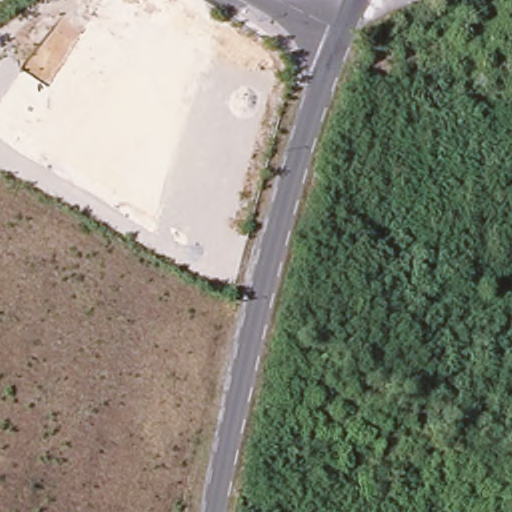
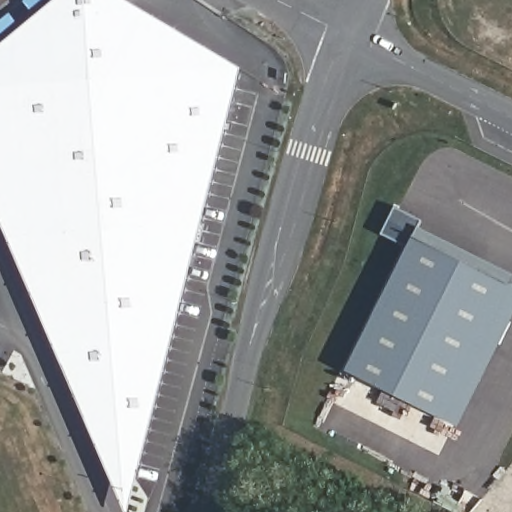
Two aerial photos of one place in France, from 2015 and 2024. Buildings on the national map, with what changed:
demolished [(0,129),(0,47),(46,0),(87,0),(112,26),(7,136),(0,129)]
new [(0,217),(0,45),(54,0),(128,0),(241,68),(128,512),(126,512),(0,217)]
new [(408,248),(382,234),(396,207),(422,221),(415,236),(512,287),(441,422),(344,370),(408,248)]
new [(512,317),(454,428),(441,422),(512,287),(512,317)]

